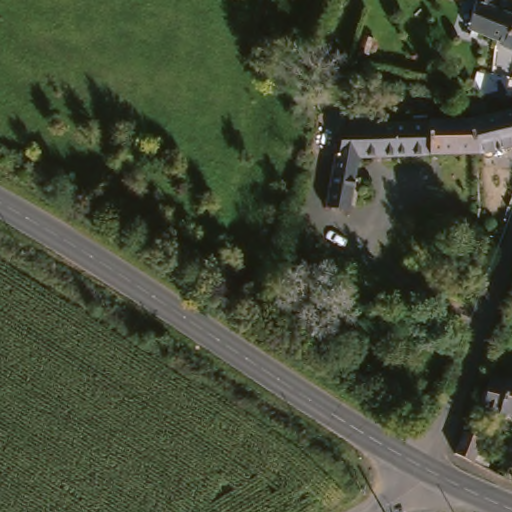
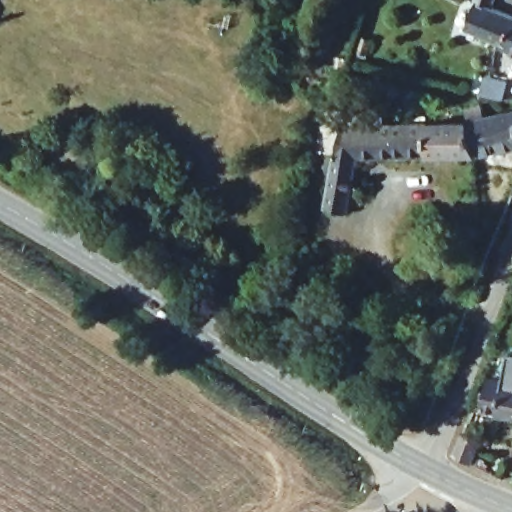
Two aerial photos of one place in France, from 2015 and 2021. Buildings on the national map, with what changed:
unchanged [(473,0),(497,0),(496,3),(512,10),(512,44),(491,35),(467,27),(473,0)]
unchanged [(436,115),(481,116),(512,110),(512,148),(484,154),(371,155),(362,208),(332,205),(355,109),(436,115)]
unchanged [(491,404),(502,370),(512,373),(512,410),(491,404)]
unchanged [(492,430),(483,461),(464,453),(472,425),(492,430)]

